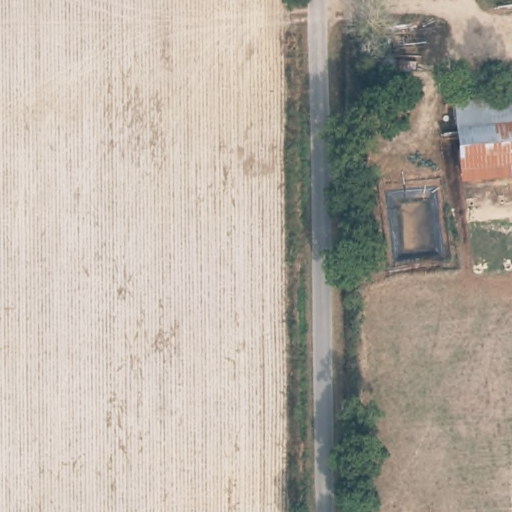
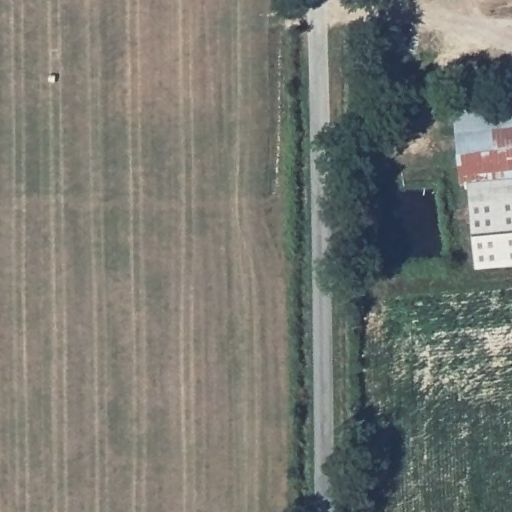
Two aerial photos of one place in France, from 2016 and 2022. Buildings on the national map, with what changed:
unchanged [(512,99),(512,183),(460,188),(452,105),(512,99)]
new [(467,188),(512,183),(512,265),(475,269),(467,188)]

